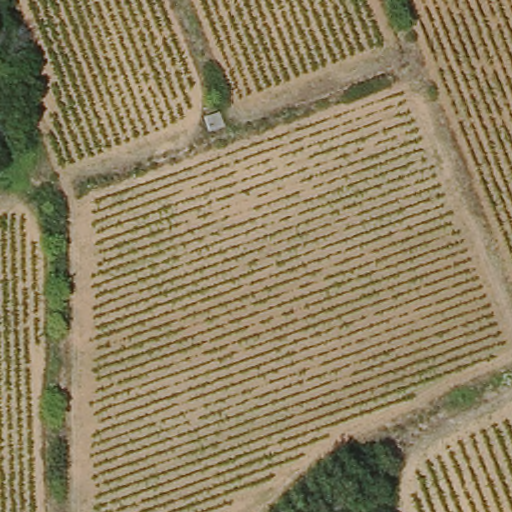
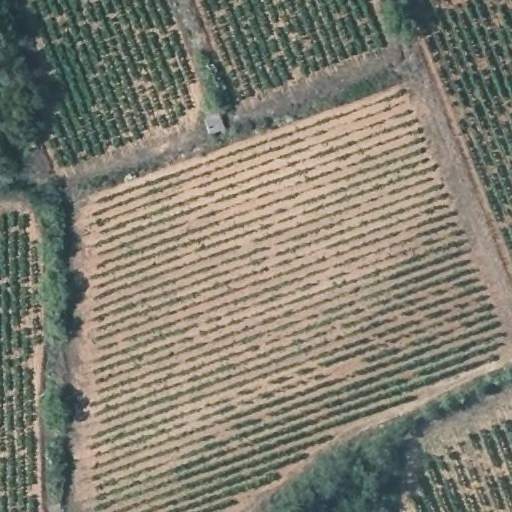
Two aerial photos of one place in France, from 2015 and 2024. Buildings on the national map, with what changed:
unchanged [(228,120),(209,127),(206,111),(226,105),(228,120)]

